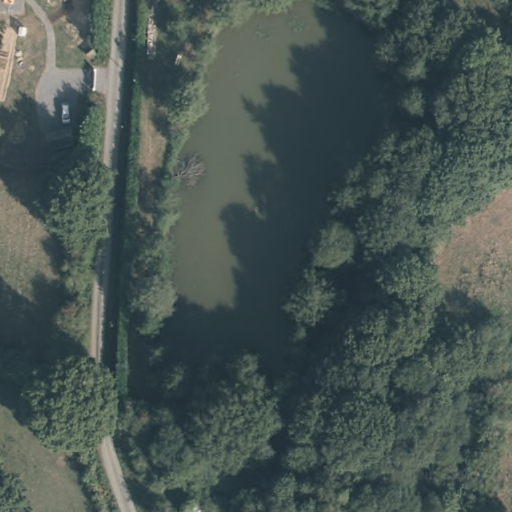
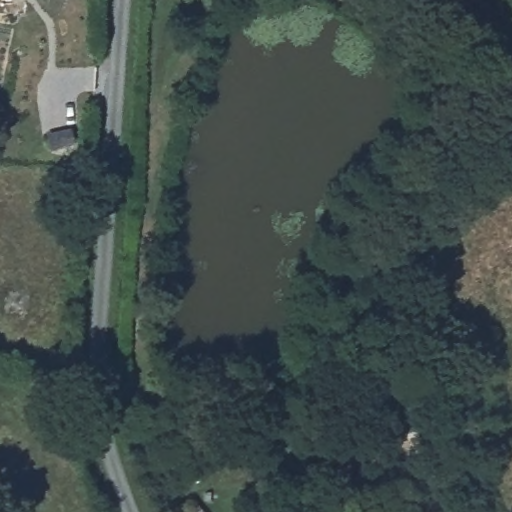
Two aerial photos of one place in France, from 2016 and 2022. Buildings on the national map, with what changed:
unchanged [(77,126),(79,141),(54,145),(51,130),(77,126)]
unchanged [(180,512),(195,500),(204,512),(180,512)]

